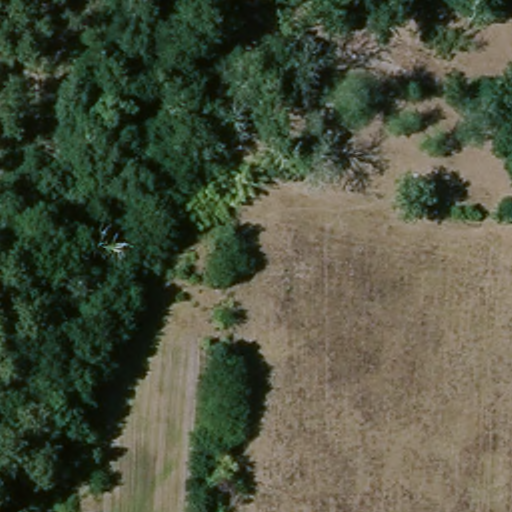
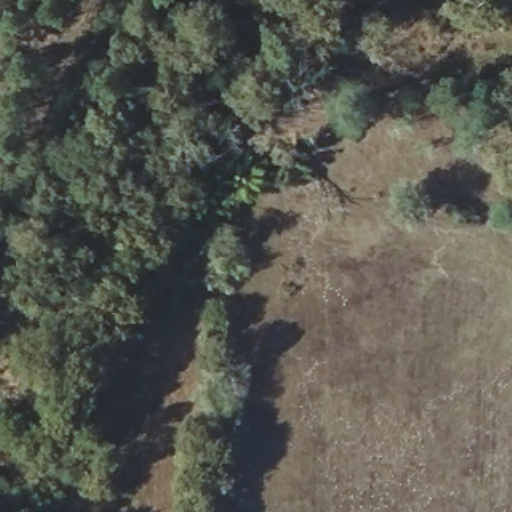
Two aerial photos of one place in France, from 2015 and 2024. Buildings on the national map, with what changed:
[]

